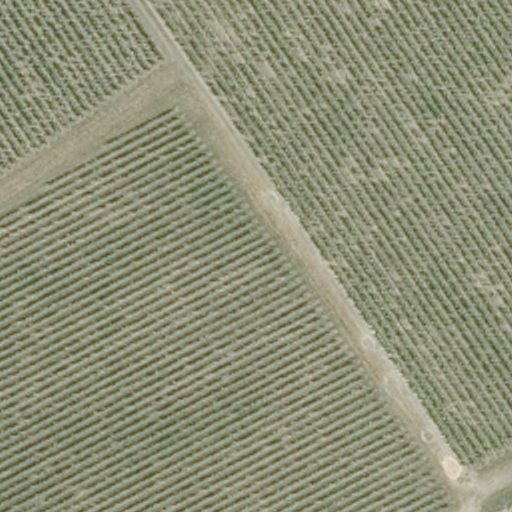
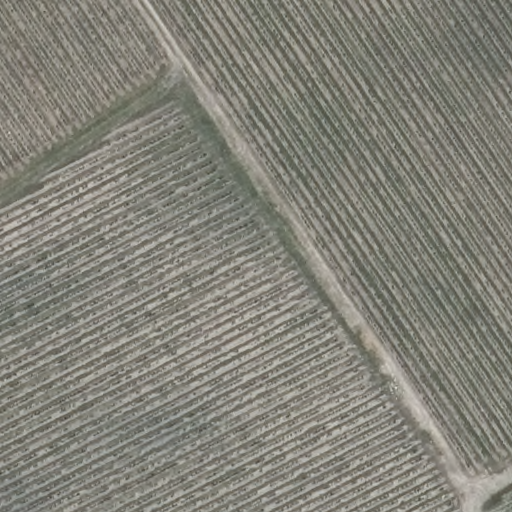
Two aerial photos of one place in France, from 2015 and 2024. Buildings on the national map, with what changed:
unchanged [(289,48),(274,53),(268,39),(283,34),(289,48)]

